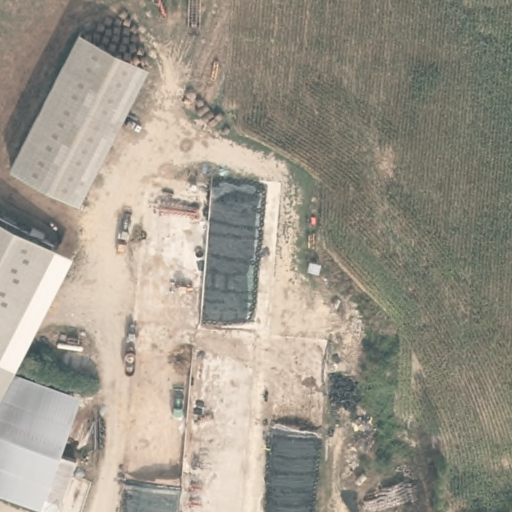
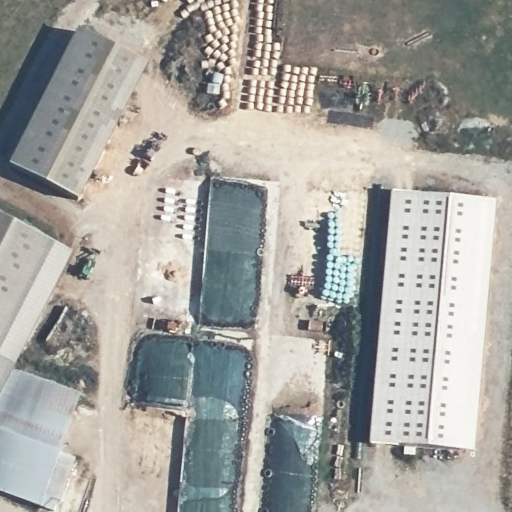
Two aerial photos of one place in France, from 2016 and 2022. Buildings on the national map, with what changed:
unchanged [(79,29),(146,64),(86,180),(77,198),(32,176),(10,164),(79,29)]
new [(391,192),(497,203),(475,454),(370,444),(391,192)]
unchanged [(0,350),(0,214),(54,242),(0,350)]
unchanged [(0,484),(0,399),(6,383),(77,408),(42,500),(0,484)]

